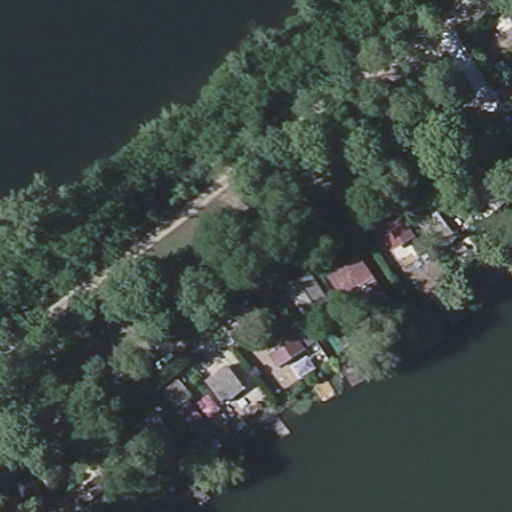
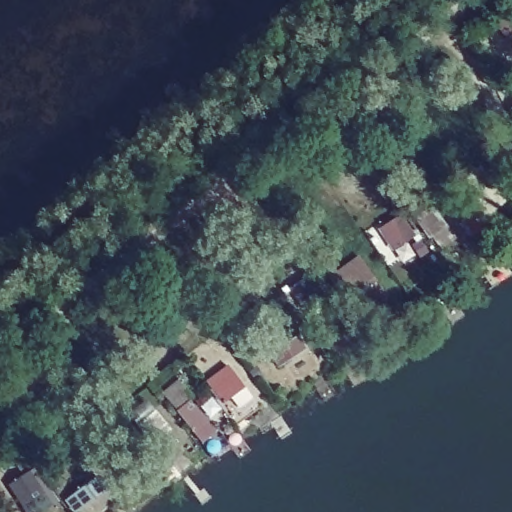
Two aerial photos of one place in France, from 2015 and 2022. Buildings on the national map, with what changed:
unchanged [(387,293),(363,308),(337,273),(361,257),(387,293)]
unchanged [(232,372),(245,393),(228,404),(215,383),(232,372)]
unchanged [(163,423),(187,459),(162,475),(140,439),(163,423)]
unchanged [(109,497),(98,512),(70,512),(90,484),(109,497)]

